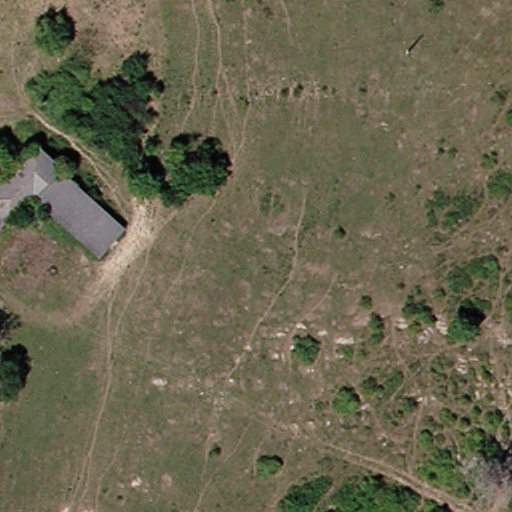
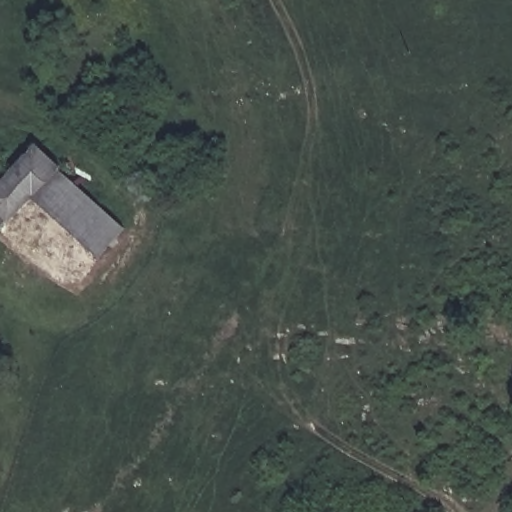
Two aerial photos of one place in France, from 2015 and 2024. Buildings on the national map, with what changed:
unchanged [(0,215),(0,174),(24,149),(97,217),(115,234),(89,263),(70,245),(17,197),(0,215)]

